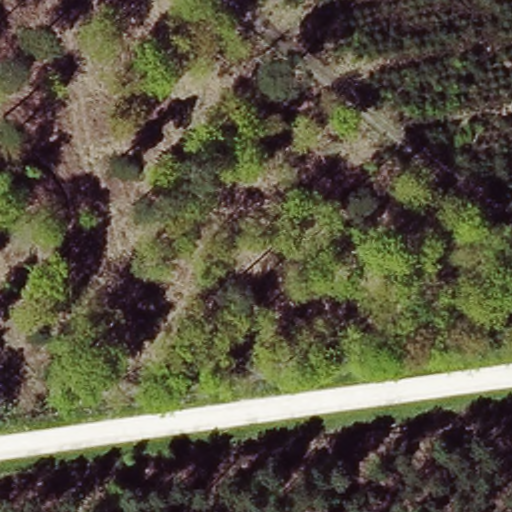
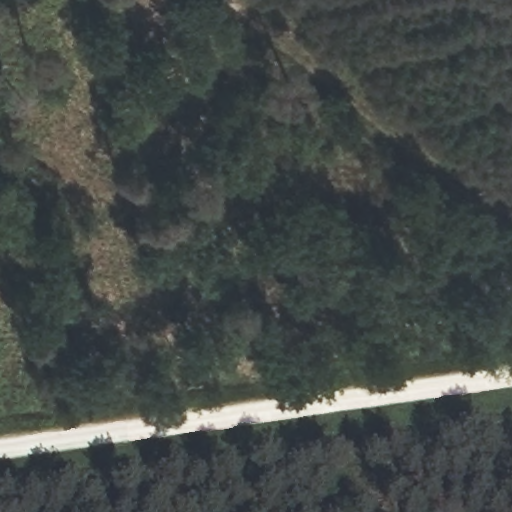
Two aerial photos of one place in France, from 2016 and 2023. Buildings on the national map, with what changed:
unchanged [(512,346),(489,344),(496,300),(512,300),(512,346)]

